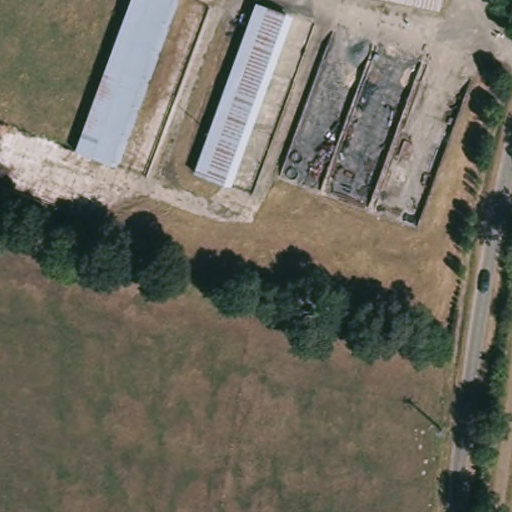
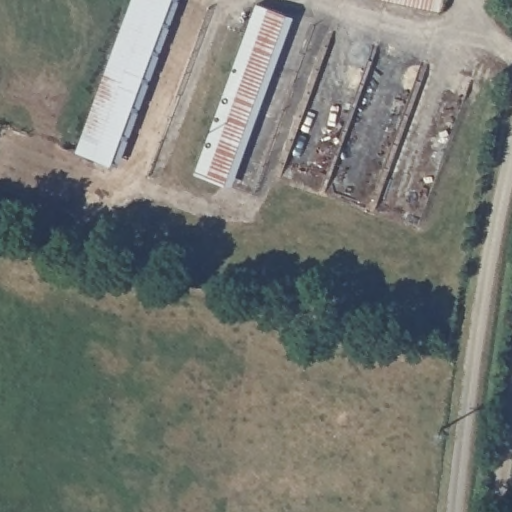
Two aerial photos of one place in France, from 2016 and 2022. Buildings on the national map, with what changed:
unchanged [(111,168),(75,153),(138,0),(173,0),(178,1),(111,168)]
unchanged [(386,0),(445,0),(444,10),(386,0)]
unchanged [(292,20),(230,188),(196,175),(258,7),(292,20)]

